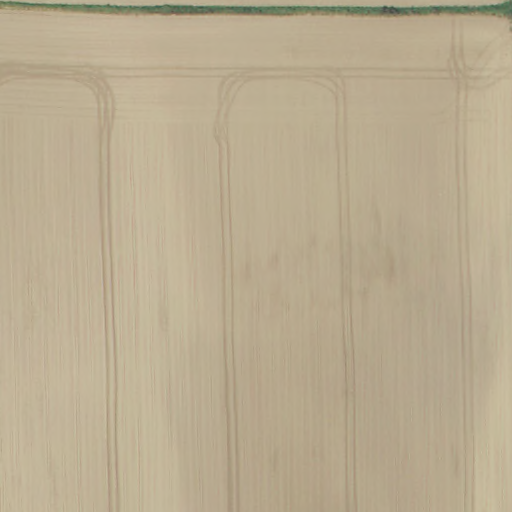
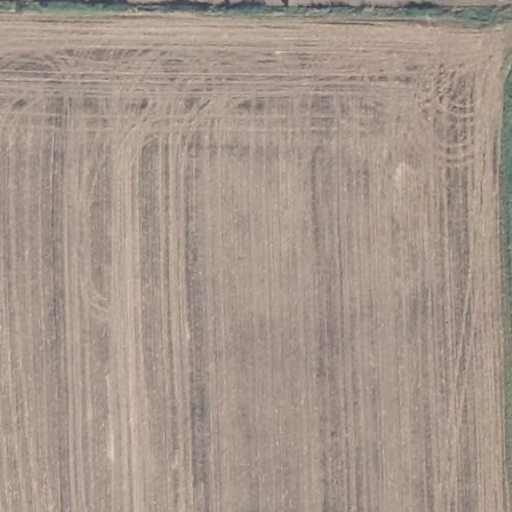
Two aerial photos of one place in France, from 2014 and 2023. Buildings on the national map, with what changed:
[]

